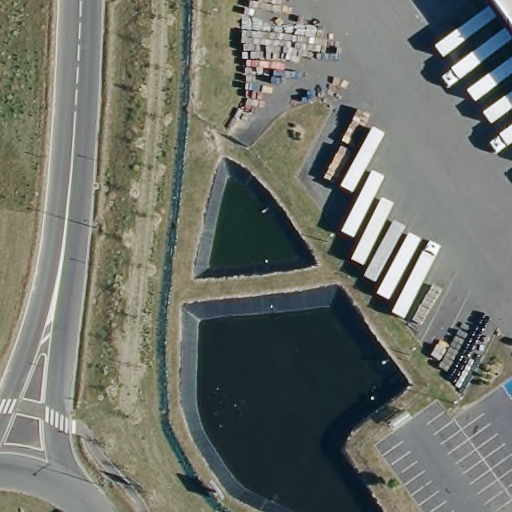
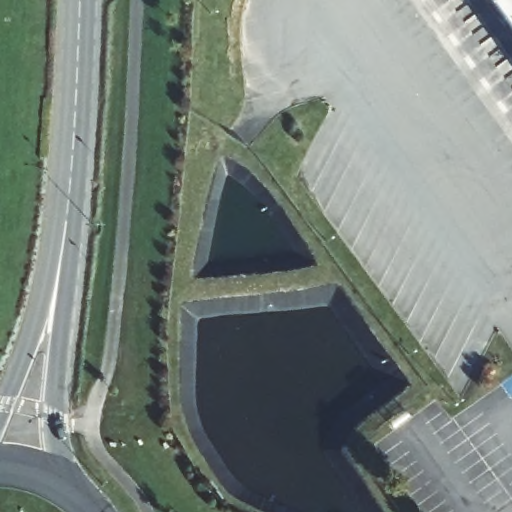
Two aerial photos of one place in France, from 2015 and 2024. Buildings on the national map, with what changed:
unchanged [(488,0),(512,0),(512,33),(488,0)]

